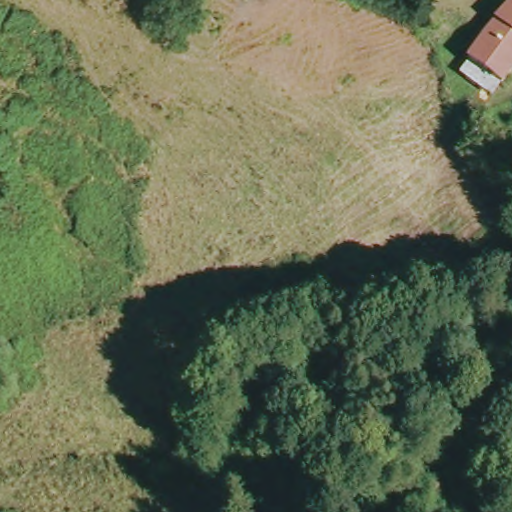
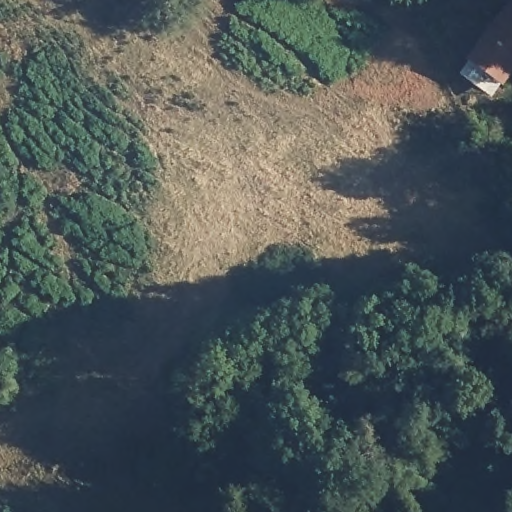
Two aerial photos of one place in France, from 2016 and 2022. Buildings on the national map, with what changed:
unchanged [(512,3),(512,72),(509,77),(475,54),(512,3)]

